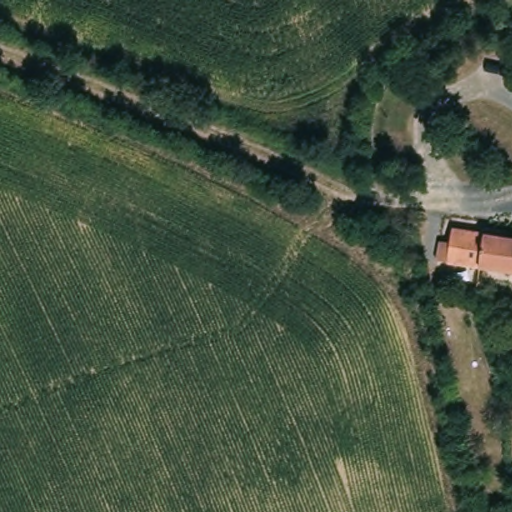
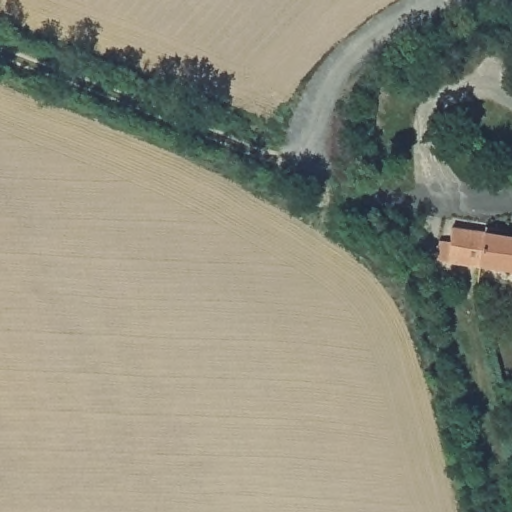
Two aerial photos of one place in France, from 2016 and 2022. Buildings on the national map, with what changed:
unchanged [(453,251),(453,238),(483,239),(483,232),(504,231),(503,240),(510,241),(511,229),(512,229),(512,279),(478,276),(471,276),(468,276),(438,275),(441,255),(453,251)]

